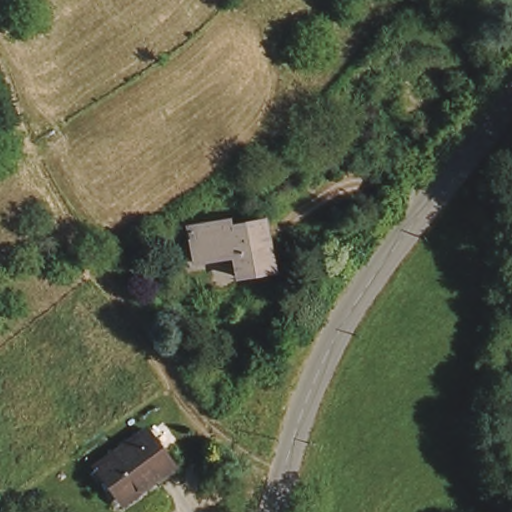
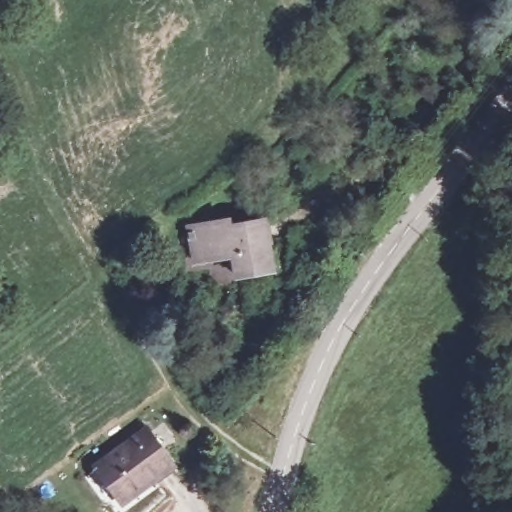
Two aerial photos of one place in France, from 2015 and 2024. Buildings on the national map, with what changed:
unchanged [(229,221),(230,228),(266,223),(273,271),(238,275),(236,257),(194,263),(189,227),(229,221)]
unchanged [(166,470),(113,505),(90,469),(143,434),(166,470)]

